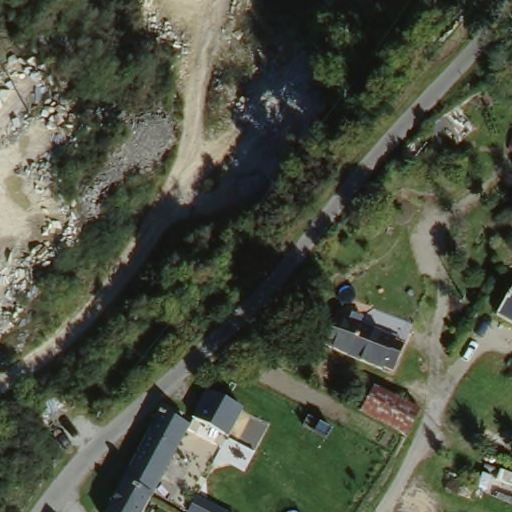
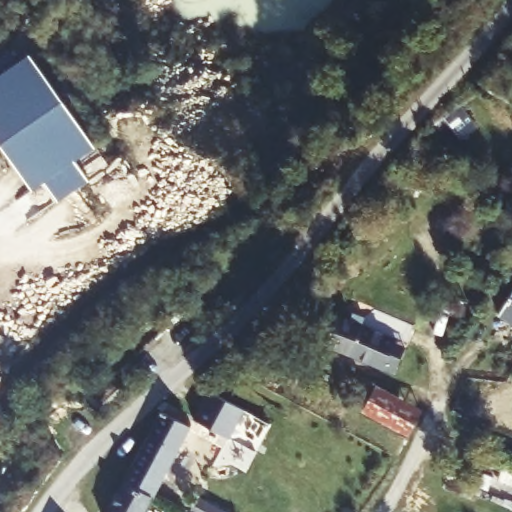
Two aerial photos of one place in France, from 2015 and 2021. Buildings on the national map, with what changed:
new [(0,143),(0,73),(29,53),(95,146),(75,160),(89,179),(58,200),(44,181),(33,189),(0,143)]
new [(444,117),(455,106),(478,124),(465,141),(450,129),(440,141),(431,134),(444,117)]
unchanged [(512,284),(512,321),(497,311),(512,284)]
unchanged [(343,307),(354,311),(365,303),(404,319),(397,337),(387,334),(340,314),(343,307)]
unchanged [(340,314),(387,334),(397,337),(386,366),(375,362),(351,352),(317,338),(320,331),(307,326),(315,306),(327,311),(328,309),(330,309),(340,314)]
unchanged [(377,381),(422,410),(406,437),(363,405),(377,381)]
unchanged [(230,438),(191,416),(207,389),(244,411),(230,438)]
unchanged [(127,481),(161,413),(188,428),(154,496),(127,481)]
unchanged [(145,512),(111,512),(127,481),(154,496),(145,512)]

